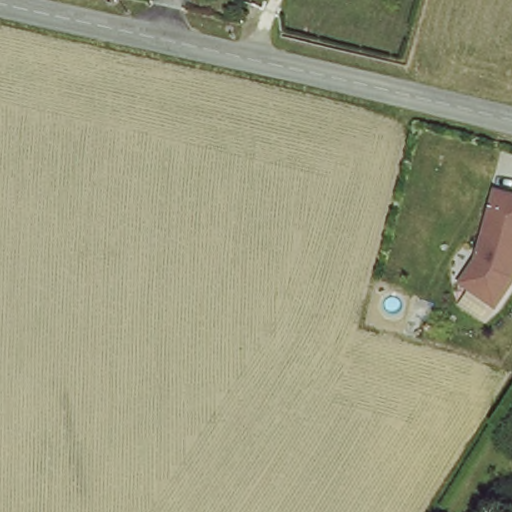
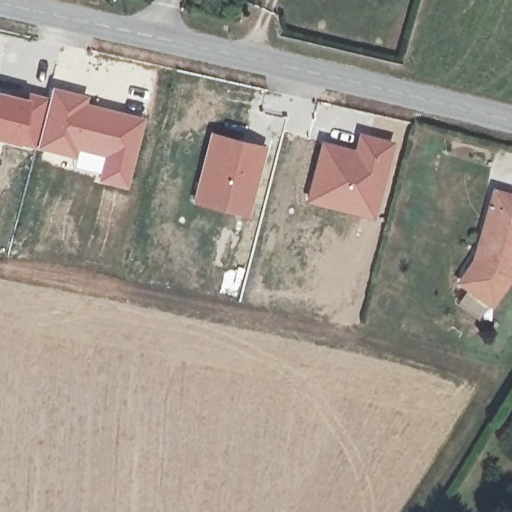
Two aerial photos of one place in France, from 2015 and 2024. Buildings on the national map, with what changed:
new [(48,95),(51,84),(89,95),(88,101),(148,117),(130,190),(95,182),(98,174),(72,168),(73,159),(35,149),(48,95)]
new [(27,90),(48,95),(35,149),(0,141),(0,89),(25,96),(27,90)]
new [(208,129),(269,145),(250,218),(190,203),(208,129)]
new [(320,139),(353,147),(358,130),(397,140),(377,220),(305,203),(320,139)]
unchanged [(512,199),(512,261),(507,278),(489,305),(465,288),(462,274),(471,260),(490,192),(512,199)]
new [(224,266),(248,269),(240,301),(218,295),(224,266)]

